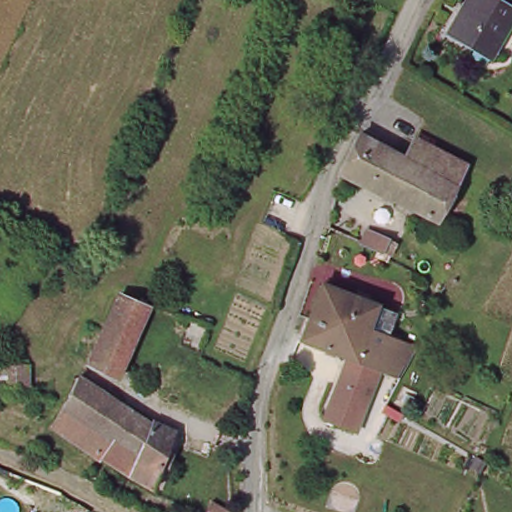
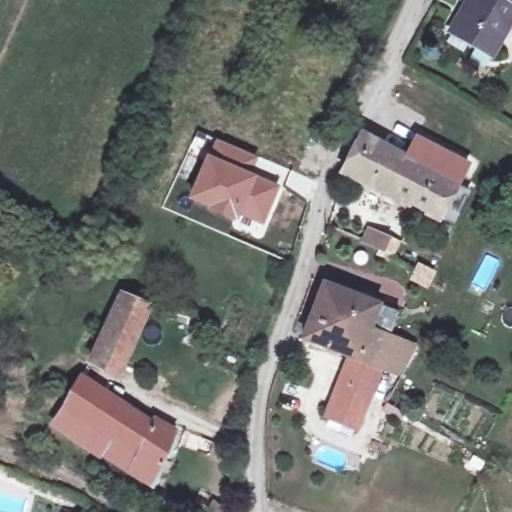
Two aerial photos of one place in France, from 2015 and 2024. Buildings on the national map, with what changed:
unchanged [(462,10),(468,0),(491,0),(512,12),(512,16),(502,34),(462,10)]
unchanged [(487,60),(468,49),(472,41),(452,28),(462,10),(502,34),(487,60)]
unchanged [(363,139),(365,135),(412,160),(422,141),(474,166),(447,223),(345,175),(363,139)]
new [(264,225),(240,214),(237,221),(189,198),(207,156),(215,141),(257,158),(252,175),(255,177),(280,187),(264,225)]
unchanged [(375,328),(352,320),(349,331),(330,324),(315,319),(327,286),(358,296),(362,288),(377,292),(374,302),(405,312),(395,339),(376,329),(375,328)]
unchanged [(123,375),(93,362),(124,296),(154,306),(127,365),(123,375)]
unchanged [(330,324),(349,331),(352,320),(375,328),(376,329),(395,339),(418,352),(404,379),(307,340),(315,319),(330,324)]
unchanged [(330,419),(334,408),(335,405),(352,363),(382,375),(365,418),(365,420),(360,431),(330,419)]
unchanged [(30,395),(0,399),(0,371),(27,367),(30,395)]
unchanged [(84,374),(154,422),(157,416),(179,428),(154,485),(107,450),(104,456),(55,421),(84,374)]

